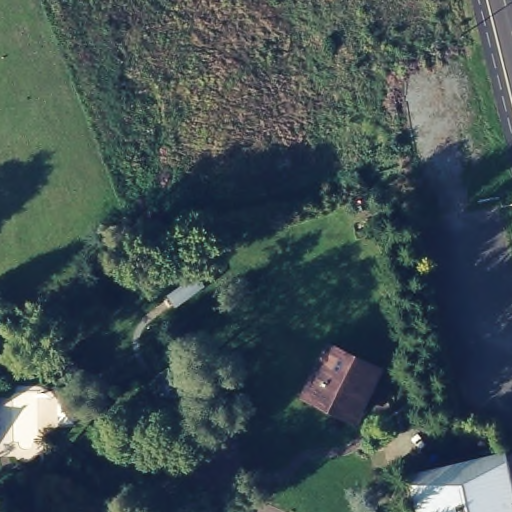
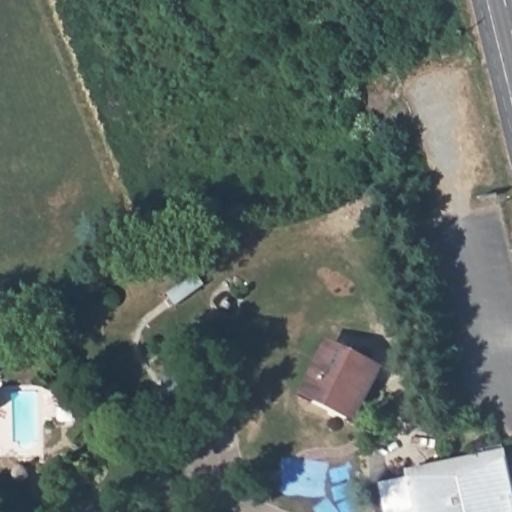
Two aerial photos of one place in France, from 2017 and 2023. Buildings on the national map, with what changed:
unchanged [(148,332),(124,336),(112,271),(136,266),(148,332)]
unchanged [(384,366),(357,422),(299,394),(327,338),(384,366)]
unchanged [(262,463),(231,508),(187,478),(219,433),(262,463)]
unchanged [(501,448),(512,496),(512,512),(436,512),(426,466),(501,448)]
unchanged [(426,466),(436,512),(419,512),(411,470),(426,466)]

